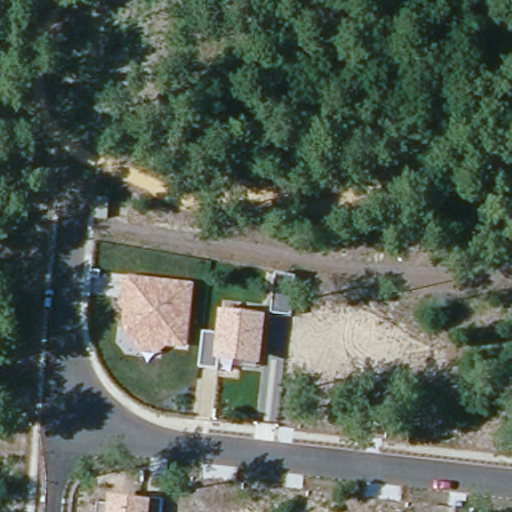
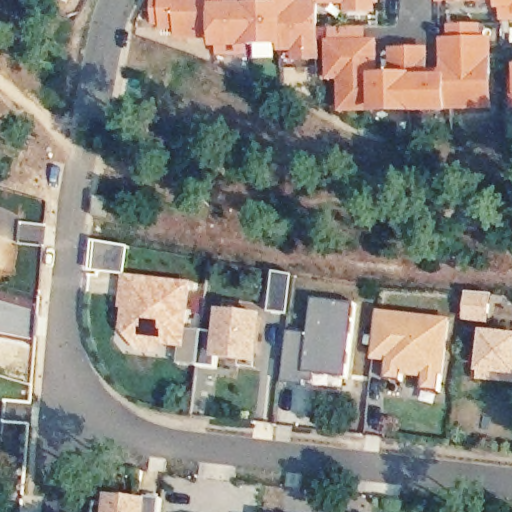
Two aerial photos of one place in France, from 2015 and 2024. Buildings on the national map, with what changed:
new [(69,4),(62,0),(71,0),(69,4)]
new [(285,40),(252,41),(253,37),(220,37),(220,33),(182,34),(182,24),(167,24),(167,20),(160,20),(160,0),(285,0),(285,40)]
new [(286,45),(285,40),(285,0),(301,0),(320,0),(321,45),(321,54),(300,54),(300,45),(286,45)]
new [(502,10),(502,2),(440,3),(440,0),(512,0),(512,22),(503,22),(502,10)]
new [(451,113),(375,114),(342,112),(341,82),(330,81),(328,41),(381,40),(383,74),(394,74),(392,50),(431,49),(432,75),(445,74),(443,40),(451,39),(451,26),(485,25),(485,39),(495,39),(496,111),(451,113)]
unchanged [(273,315),(278,275),(298,277),(292,315),(273,315)]
unchanged [(189,348),(167,347),(160,356),(139,353),(122,332),(125,277),(193,283),(189,348)]
new [(293,328),(314,330),(317,295),(361,300),(352,375),(311,370),(310,382),(287,380),(293,328)]
unchanged [(217,335),(220,308),(266,315),(260,365),(216,360),(216,370),(199,367),(202,334),(217,335)]
new [(451,320),(446,377),(442,376),(440,392),(424,391),(425,378),(403,375),(403,381),(387,379),(388,363),(375,361),(380,312),(451,320)]
new [(482,375),(486,331),(512,334),(512,383),(482,380),(482,375)]
unchanged [(110,495),(152,500),(164,501),(162,512),(97,512),(98,503),(110,506),(110,495)]

